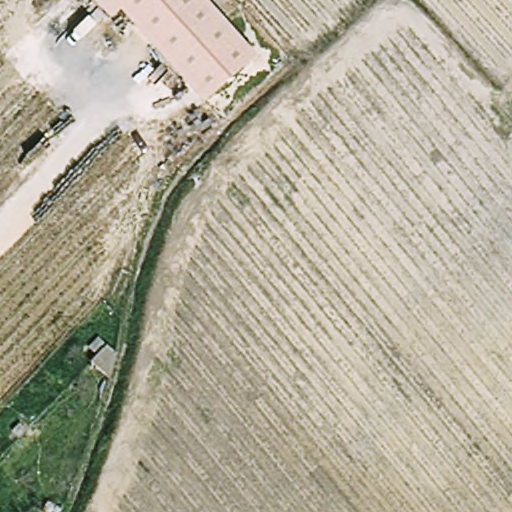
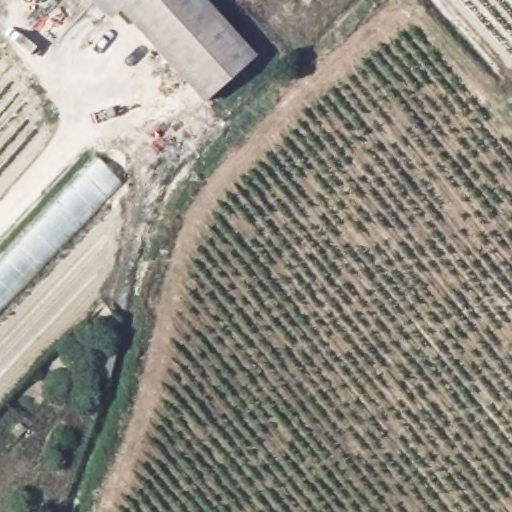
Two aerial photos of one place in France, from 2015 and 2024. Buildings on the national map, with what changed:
unchanged [(204,103),(119,11),(109,20),(92,0),(203,0),(255,57),(204,103)]
new [(97,159),(122,184),(0,315),(0,259),(97,159)]

